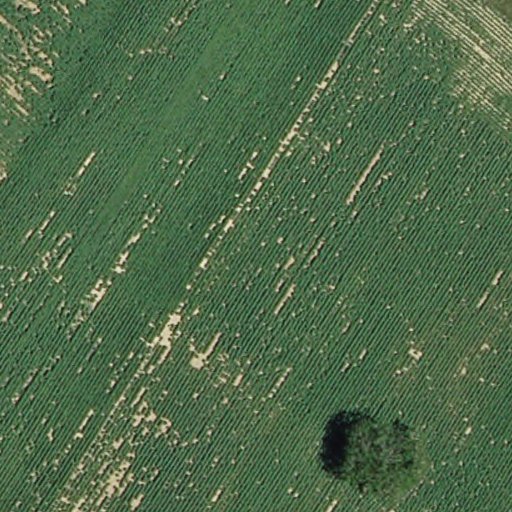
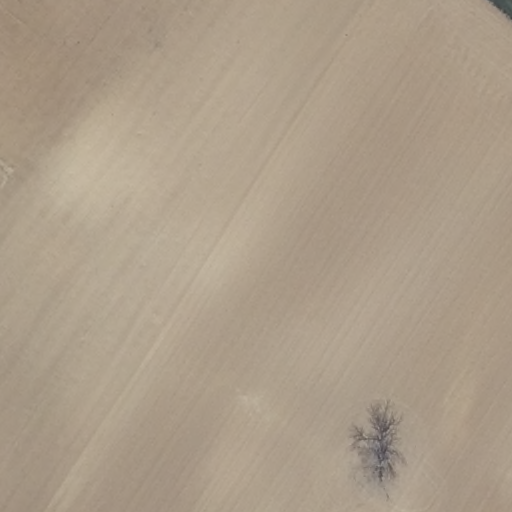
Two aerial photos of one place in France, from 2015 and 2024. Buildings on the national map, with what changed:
[]

